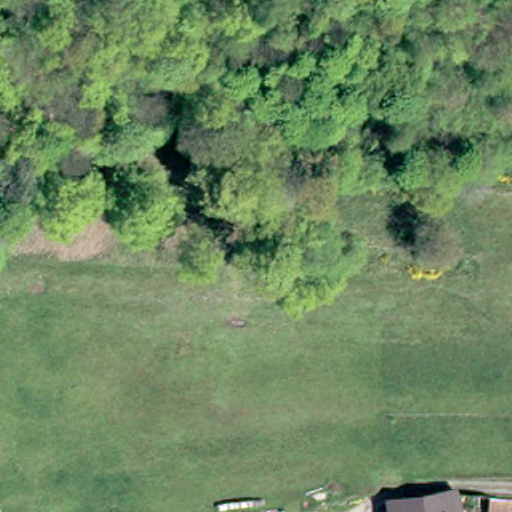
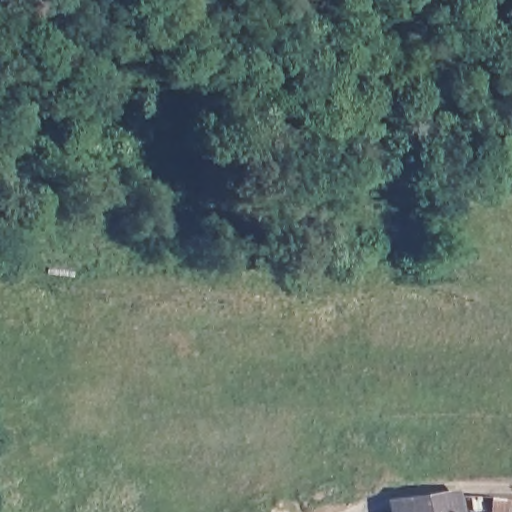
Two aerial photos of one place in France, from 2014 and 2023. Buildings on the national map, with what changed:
unchanged [(455,503),(456,509),(456,512),(395,512),(455,503)]
unchanged [(487,504),(512,504),(512,512),(488,512),(487,504)]

